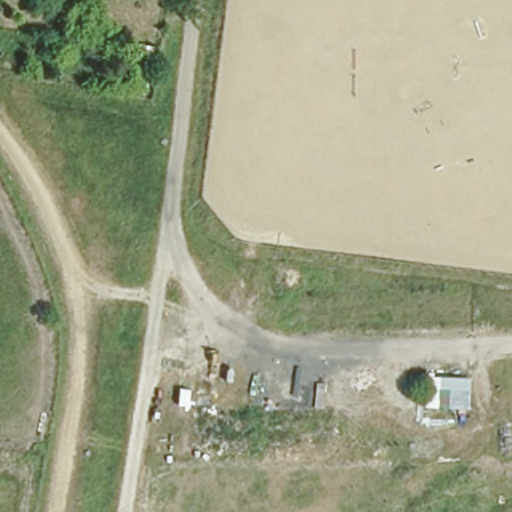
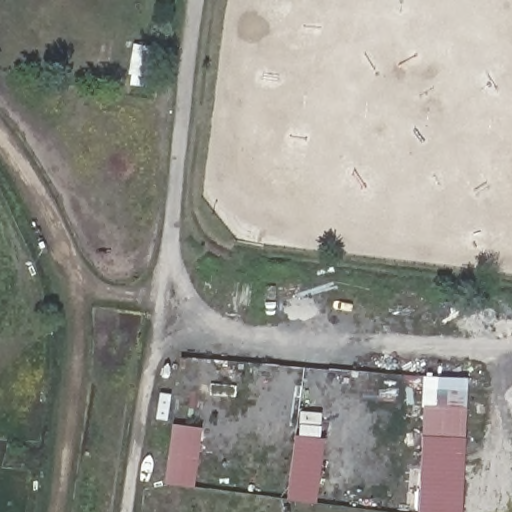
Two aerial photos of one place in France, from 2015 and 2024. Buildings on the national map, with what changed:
unchanged [(132,47),(161,52),(156,95),(125,90),(132,47)]
new [(425,438),(427,377),(467,378),(464,438),(425,438)]
new [(193,487),(164,483),(172,424),(202,428),(193,487)]
new [(316,503),(286,500),(295,435),(324,438),(316,503)]
new [(423,438),(425,438),(464,438),(462,512),(418,512),(423,438)]

